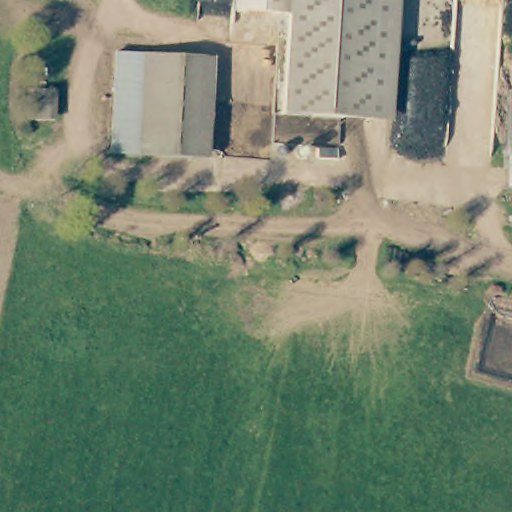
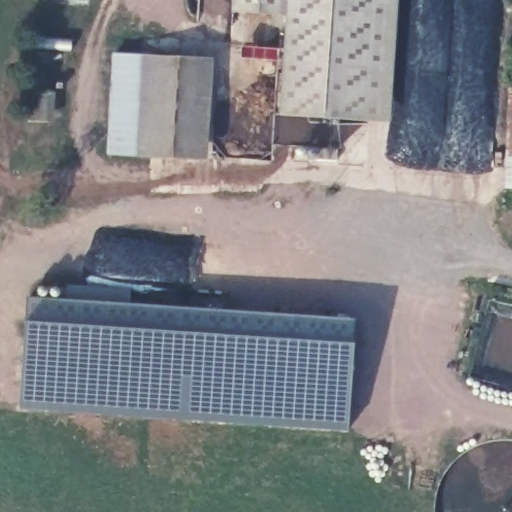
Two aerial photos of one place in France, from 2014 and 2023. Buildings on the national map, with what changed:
new [(232,0),(399,0),(391,123),(281,116),(288,15),(231,12),(232,0)]
unchanged [(103,147),(111,56),(156,53),(209,59),(201,159),(147,154),(103,147)]
unchanged [(512,93),(512,193),(501,193),(507,93),(507,92),(512,93)]
new [(350,433),(20,409),(26,296),(66,299),(68,285),(133,289),(131,304),(355,319),(350,433)]

